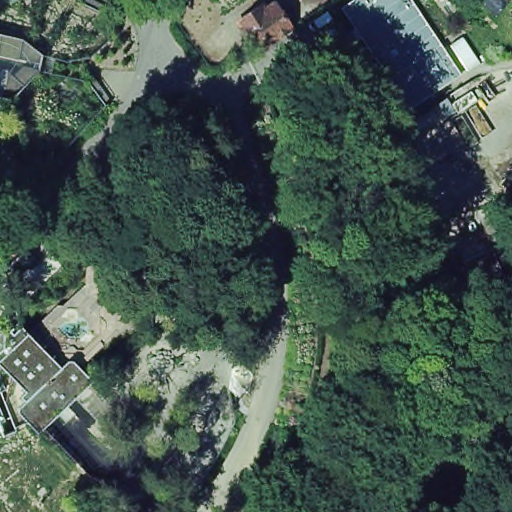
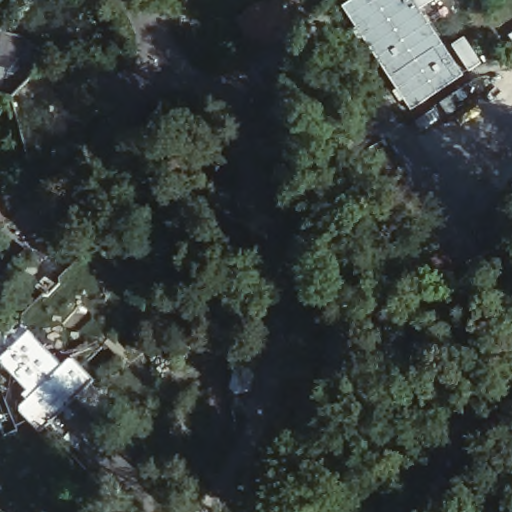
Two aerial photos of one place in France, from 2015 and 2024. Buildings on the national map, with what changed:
unchanged [(349,0),(414,0),(463,75),(405,111),(340,6),(349,0)]
unchanged [(249,15),(255,17),(270,7),(279,20),(284,17),(291,28),(271,42),(264,40),(260,35),(252,41),(239,22),(249,15)]
unchanged [(23,38),(44,54),(39,71),(10,101),(0,98),(0,33),(23,38)]
unchanged [(384,180),(373,158),(387,151),(399,172),(439,253),(414,266),(374,185),(384,180)]
unchanged [(511,204),(512,206),(512,238),(495,246),(482,217),(511,204)]
unchanged [(254,246),(258,272),(234,278),(227,252),(254,246)]
unchanged [(23,413),(24,407),(30,402),(25,398),(30,393),(0,361),(0,354),(7,347),(7,333),(10,333),(14,330),(17,333),(25,326),(65,367),(72,361),(78,361),(98,382),(43,435),(23,413)]

